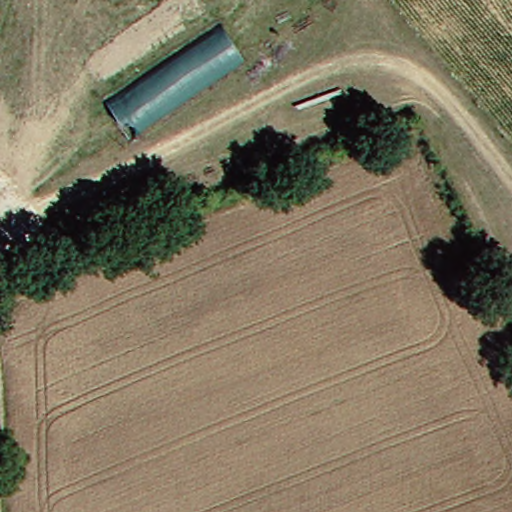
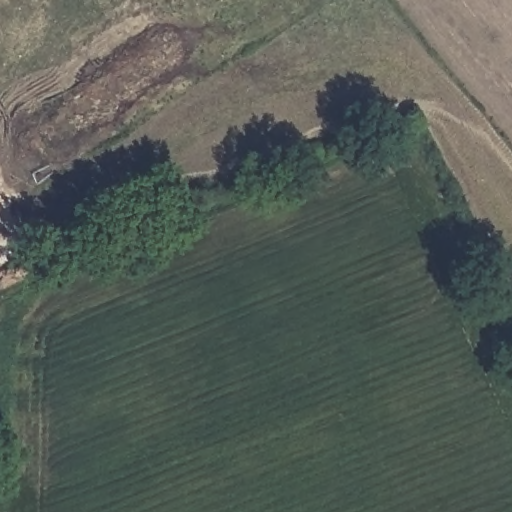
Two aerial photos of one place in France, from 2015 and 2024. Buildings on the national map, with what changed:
demolished [(242,58),(127,135),(104,97),(221,19),(242,58)]

